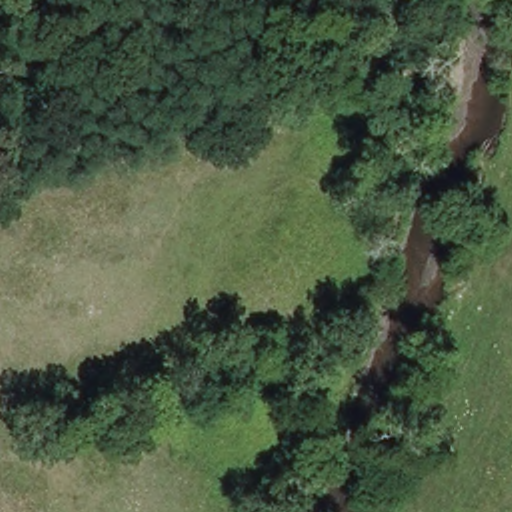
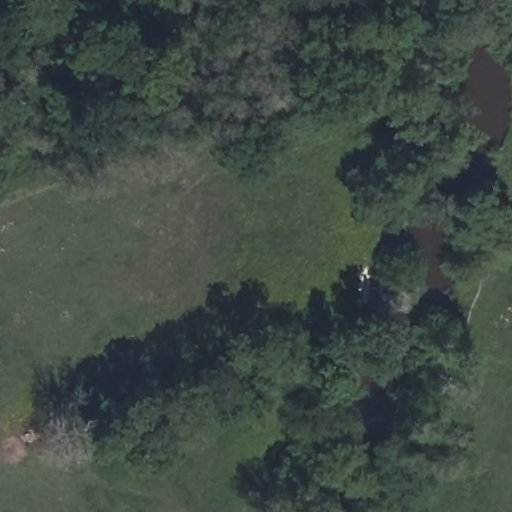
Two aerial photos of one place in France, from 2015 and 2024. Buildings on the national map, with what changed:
[]

